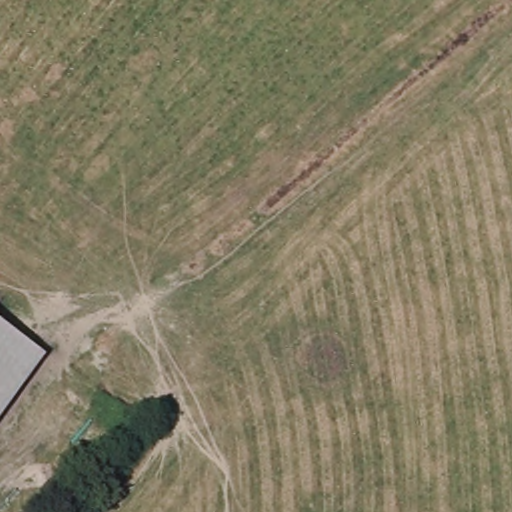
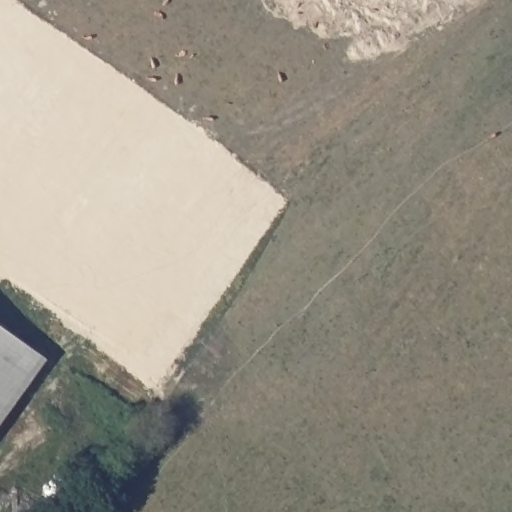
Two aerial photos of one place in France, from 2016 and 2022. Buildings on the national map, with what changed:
unchanged [(0,426),(0,330),(48,365),(0,426)]

